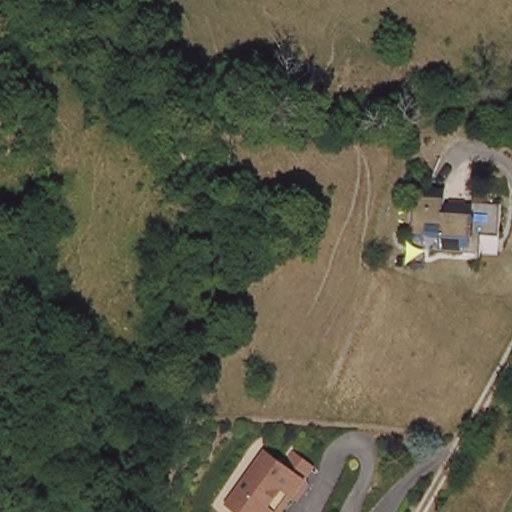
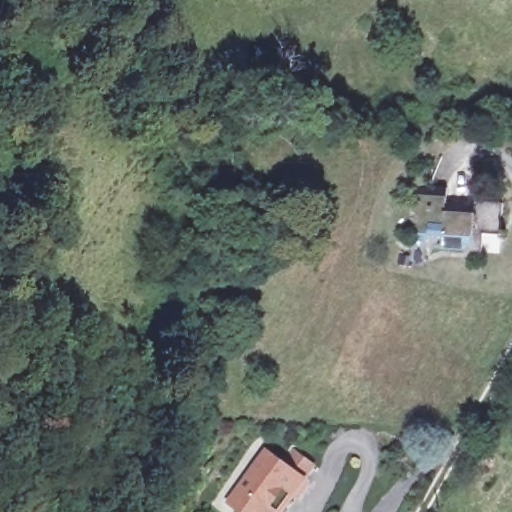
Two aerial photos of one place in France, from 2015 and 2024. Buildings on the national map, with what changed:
unchanged [(470,187),(467,240),(435,240),(435,232),(415,232),(417,180),(430,180),(430,175),(445,175),(445,187),(470,187)]
unchanged [(284,510),(270,498),(264,506),(249,508),(232,492),(268,444),(283,456),(293,443),(318,465),(308,477),(304,474),(293,487),(298,491),(284,510)]

